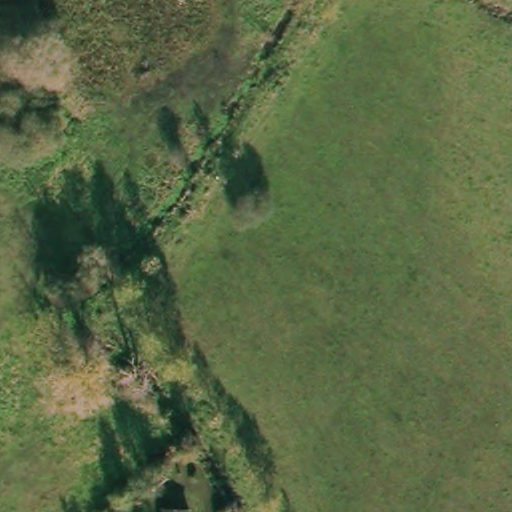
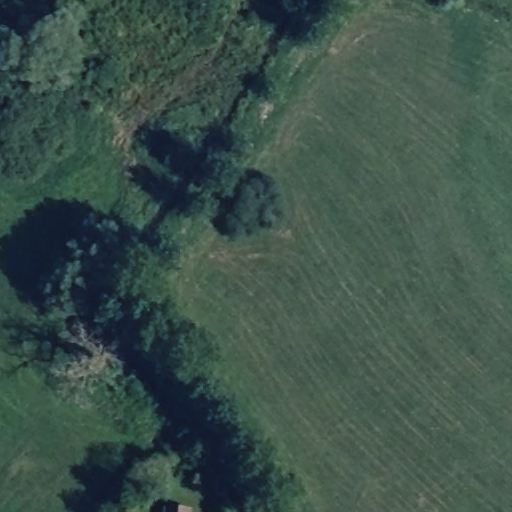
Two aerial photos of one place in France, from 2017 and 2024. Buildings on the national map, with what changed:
unchanged [(189,512),(165,512),(165,508),(189,508),(189,512)]

